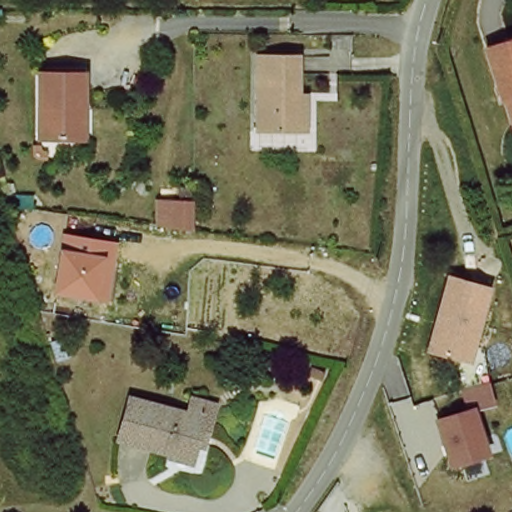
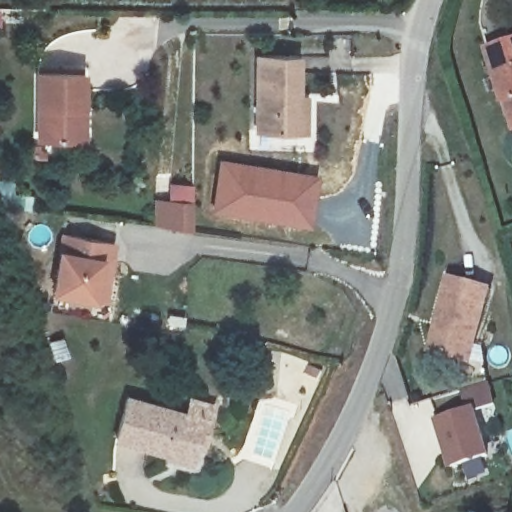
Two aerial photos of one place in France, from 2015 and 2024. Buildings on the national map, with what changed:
unchanged [(488,44),(512,36),(512,107),(507,108),(488,44)]
unchanged [(312,134),(291,133),(257,132),(260,51),(303,52),(301,90),(314,91),(312,134)]
unchanged [(72,142),(31,141),(33,67),(84,68),(84,106),(84,144),(72,142)]
new [(216,158),(317,172),(311,226),(208,213),(216,158)]
new [(168,197),(189,200),(189,230),(164,226),(168,197)]
unchanged [(112,301),(99,298),(54,290),(61,250),(64,234),(119,243),(112,301)]
unchanged [(476,365),(431,352),(451,276),(495,287),(476,365)]
unchanged [(498,407),(479,410),(493,456),(450,468),(435,417),(470,409),(463,388),(491,382),(498,407)]
unchanged [(179,414),(183,397),(207,405),(199,438),(191,439),(186,460),(113,445),(124,400),(179,414)]

